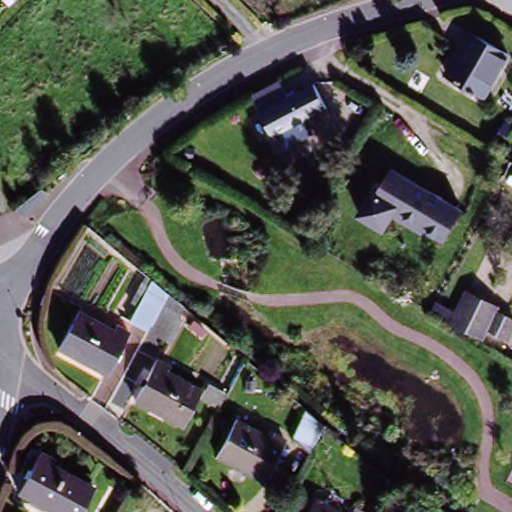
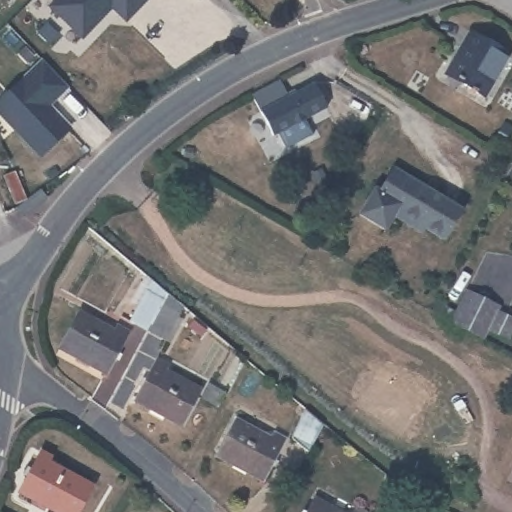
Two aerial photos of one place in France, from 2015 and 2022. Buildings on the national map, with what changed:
new [(150,0),(133,16),(126,8),(118,17),(110,11),(80,39),(51,9),(61,0),(150,0)]
unchanged [(446,72),(470,33),(511,55),(484,96),(446,72)]
new [(0,119),(0,104),(39,62),(66,87),(54,100),(48,107),(70,128),(42,158),(0,119)]
unchanged [(241,124),(257,117),(250,101),(270,92),(287,85),(293,99),(318,88),(328,112),(268,141),(252,148),(241,124)]
unchanged [(361,222),(394,169),(468,213),(447,248),(400,220),(388,239),(361,222)]
unchanged [(495,337),(478,326),(470,338),(468,337),(439,320),(459,287),(491,305),(488,309),(506,320),(495,337)]
unchanged [(129,318),(144,293),(164,305),(180,314),(164,339),(150,330),(129,318)]
unchanged [(58,347),(79,311),(114,331),(118,325),(127,331),(102,374),(58,347)]
unchanged [(135,403),(160,361),(172,369),(170,374),(201,392),(179,429),(135,403)]
unchanged [(222,414),(205,404),(215,387),(232,398),(222,414)]
unchanged [(308,433),(323,405),(340,419),(323,447),(308,433)]
unchanged [(216,454),(236,419),(269,436),(274,429),(288,436),(262,480),(216,454)]
unchanged [(19,497),(43,455),(54,461),(51,467),(91,489),(78,512),(45,512),(19,497)]
unchanged [(312,504),(329,512),(307,512),(312,504)]
unchanged [(350,509),(356,512),(348,512),(350,509)]

